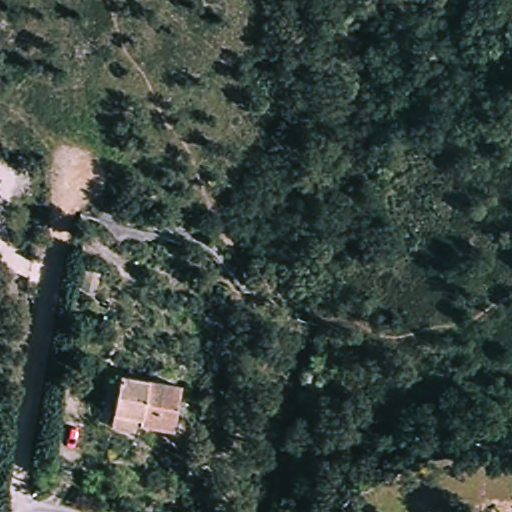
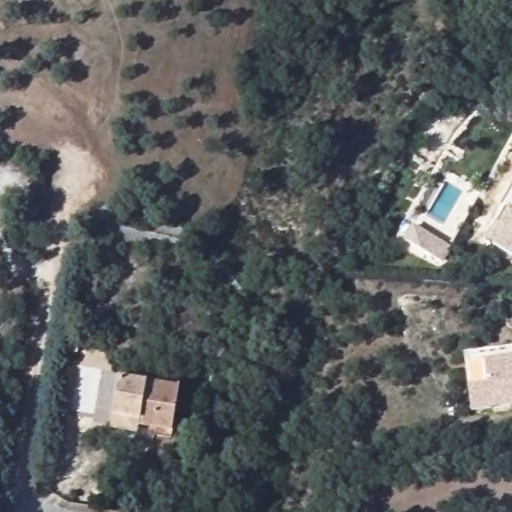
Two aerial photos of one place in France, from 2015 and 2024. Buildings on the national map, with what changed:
new [(504,204),(500,201),(512,183),(512,254),(483,236),(504,204)]
new [(512,407),(471,413),(468,387),(488,384),(484,361),(512,357),(512,407)]
unchanged [(111,431),(112,416),(115,378),(177,385),(174,422),(173,437),(111,431)]

